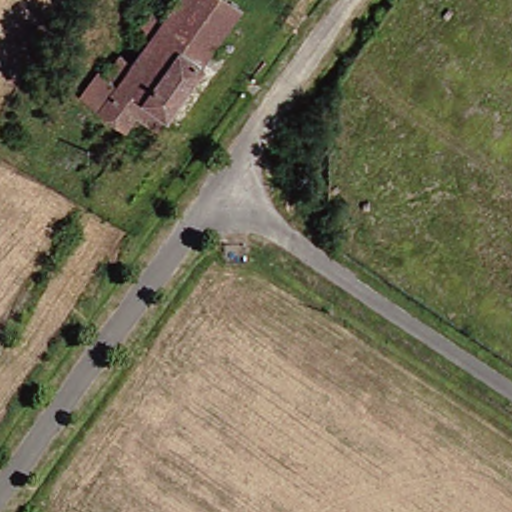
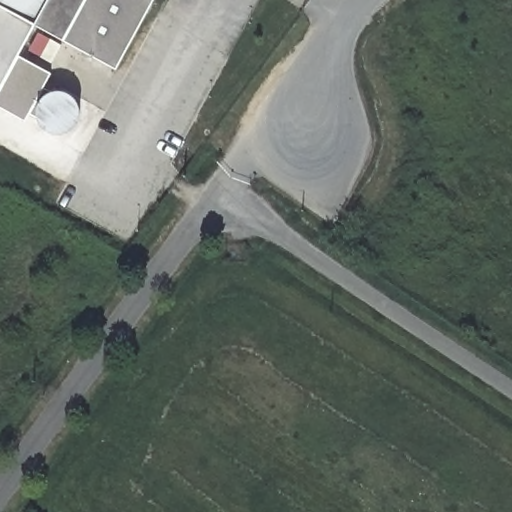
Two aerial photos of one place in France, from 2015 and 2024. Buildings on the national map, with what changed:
new [(115,69),(66,41),(25,113),(0,99),(0,0),(153,0),(115,69)]
demolished [(199,66),(200,67),(165,119),(163,117),(154,131),(132,116),(121,131),(77,100),(96,74),(102,77),(116,57),(127,65),(147,37),(135,30),(150,10),(161,17),(174,0),(221,0),(237,11),(199,66)]

